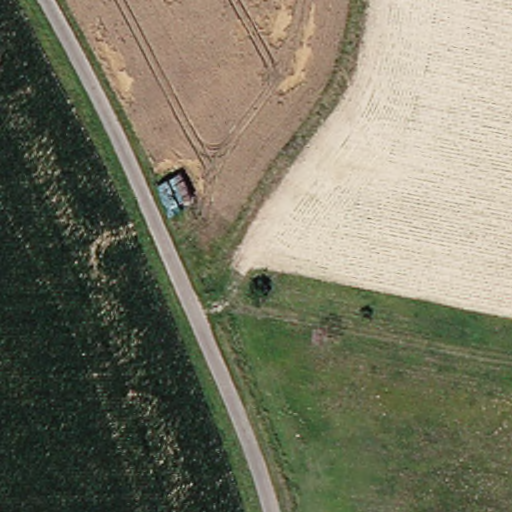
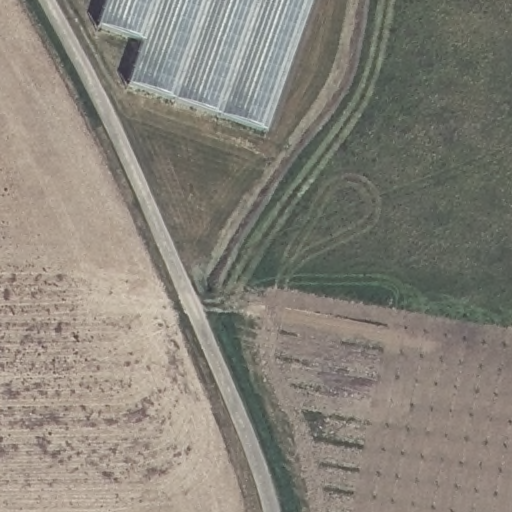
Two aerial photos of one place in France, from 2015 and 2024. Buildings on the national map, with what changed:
new [(118,88),(80,0),(318,0),(272,131),(118,88)]

